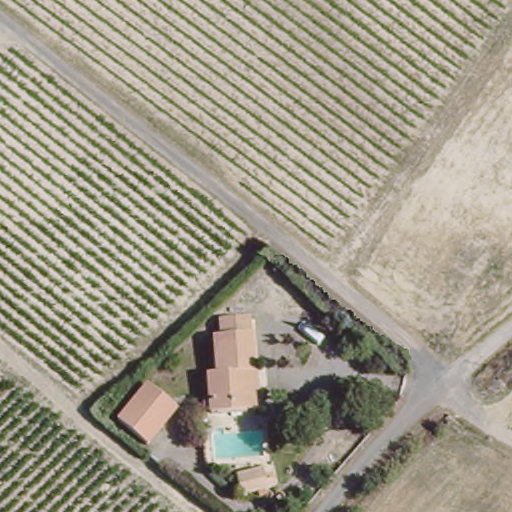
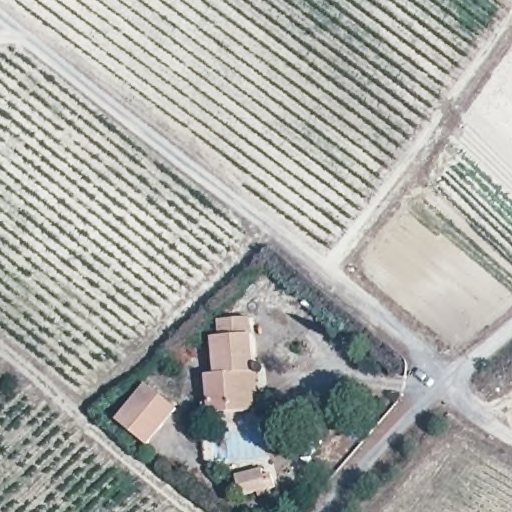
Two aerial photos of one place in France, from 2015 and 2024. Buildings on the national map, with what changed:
unchanged [(247,372),(251,372),(253,409),(206,413),(202,375),(208,374),(207,338),(215,337),(215,319),(245,318),(247,372)]
unchanged [(170,410),(145,444),(115,422),(140,388),(170,410)]
unchanged [(268,495),(245,503),(239,484),(262,476),(268,495)]

